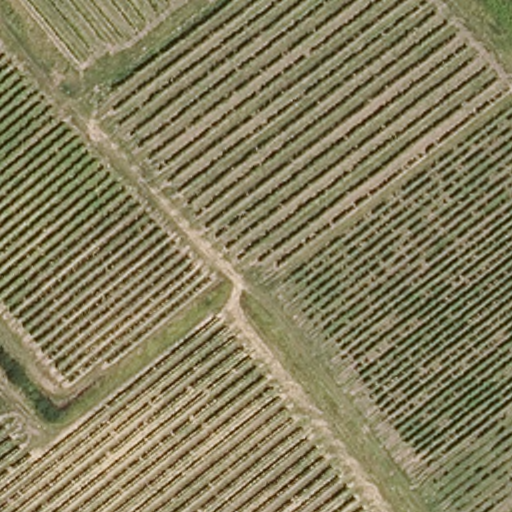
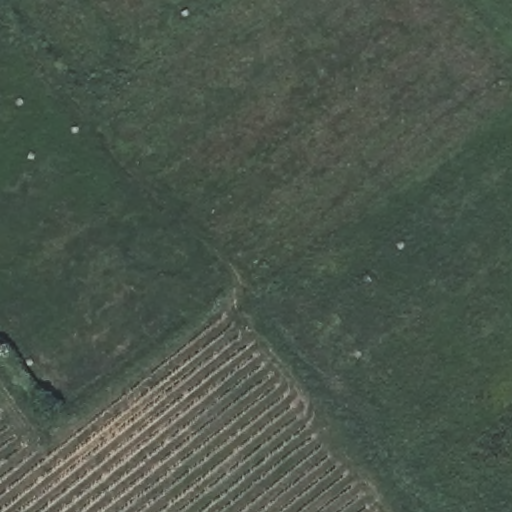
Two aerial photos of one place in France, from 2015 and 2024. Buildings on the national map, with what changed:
[]

